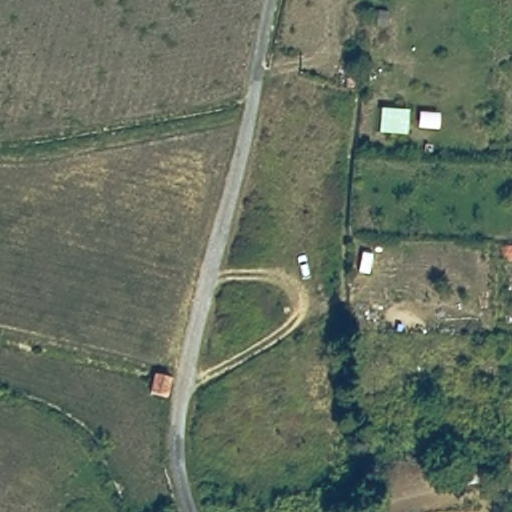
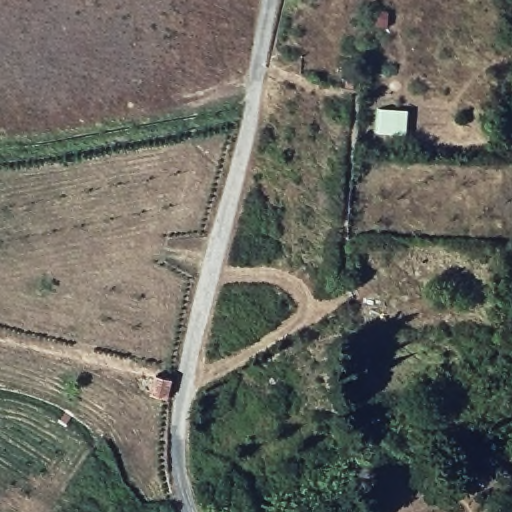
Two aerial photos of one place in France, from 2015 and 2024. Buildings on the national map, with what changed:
unchanged [(154,373),(171,380),(166,397),(148,392),(154,373)]
unchanged [(487,471),(486,484),(462,479),(464,466),(487,471)]

